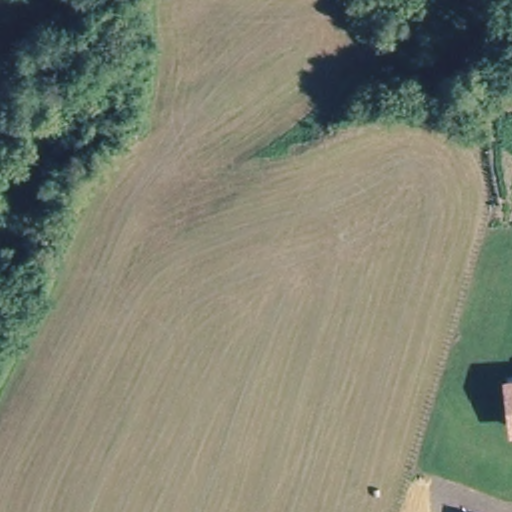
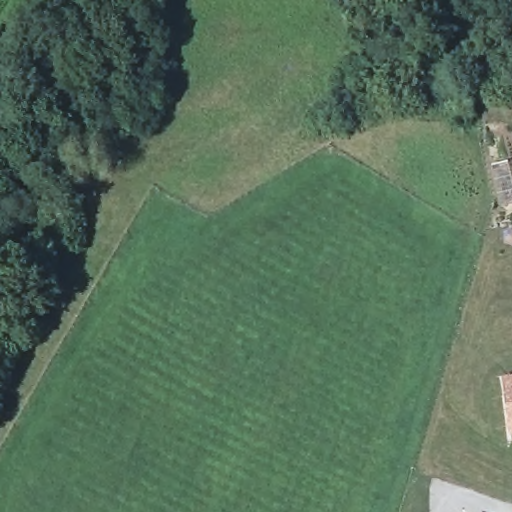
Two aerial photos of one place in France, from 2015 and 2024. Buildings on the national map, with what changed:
unchanged [(506,383),(512,382),(512,431),(506,383)]

